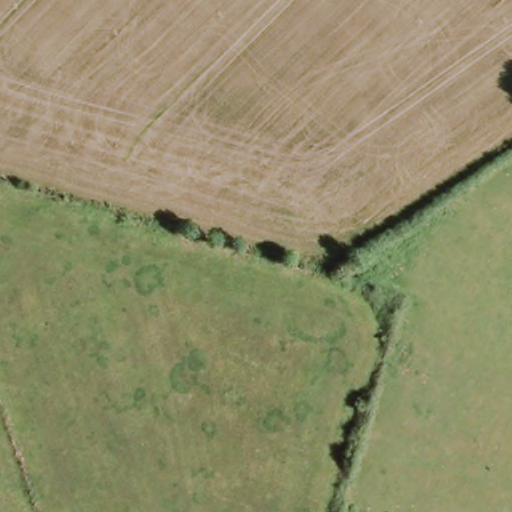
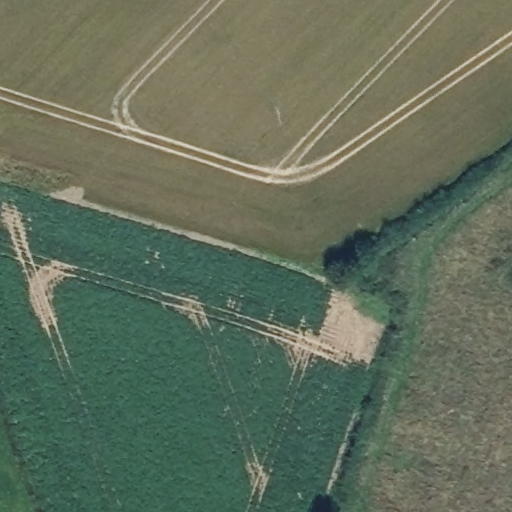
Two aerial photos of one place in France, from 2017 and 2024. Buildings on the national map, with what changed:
[]

